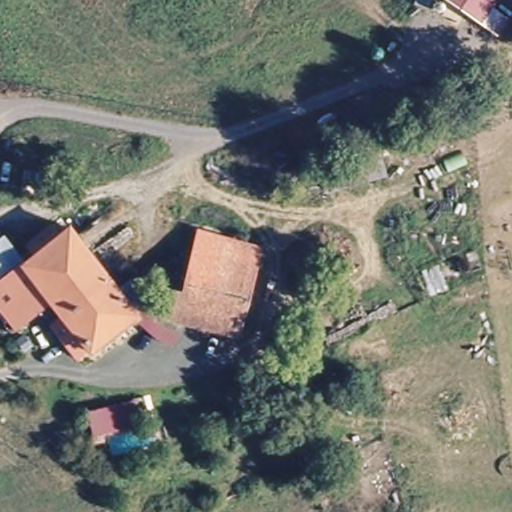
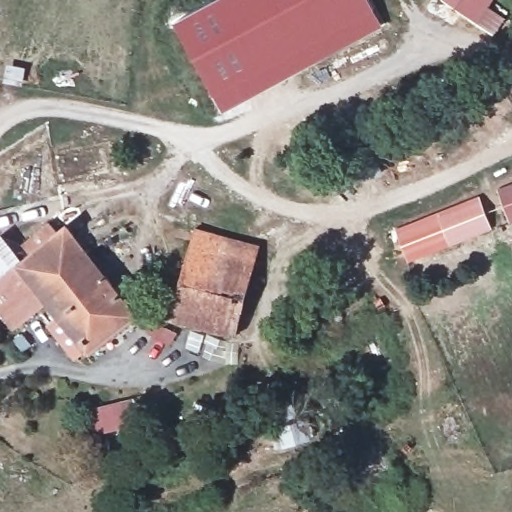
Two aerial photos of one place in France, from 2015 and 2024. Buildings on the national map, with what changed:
new [(368,0),(382,26),(222,114),(171,21),(210,0),(368,0)]
unchanged [(485,0),(488,4),(501,12),(491,29),(472,16),(448,0),(485,0)]
new [(508,221),(496,189),(512,183),(512,220),(508,221)]
new [(493,229),(407,262),(393,227),(480,195),(493,229)]
new [(197,227),(260,245),(252,263),(191,249),(197,227)]
unchanged [(113,290),(124,282),(141,300),(125,321),(87,350),(49,302),(15,326),(0,305),(0,283),(27,261),(69,230),(113,290)]
unchanged [(0,237),(5,234),(27,261),(0,283),(0,237)]
unchanged [(145,289),(160,290),(161,285),(187,290),(190,271),(185,270),(191,249),(252,263),(235,330),(155,316),(157,306),(143,301),(145,289)]
unchanged [(85,410),(136,398),(142,424),(90,437),(85,410)]

